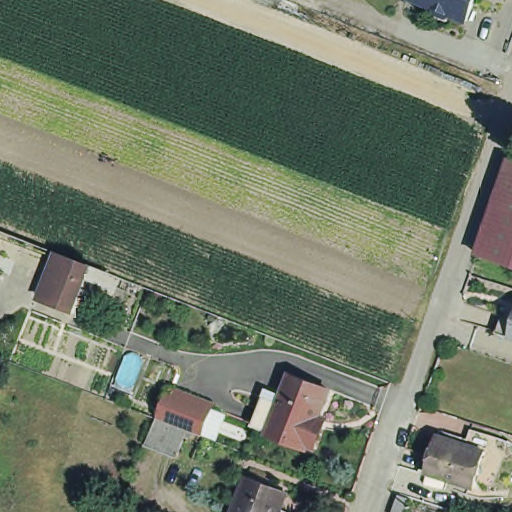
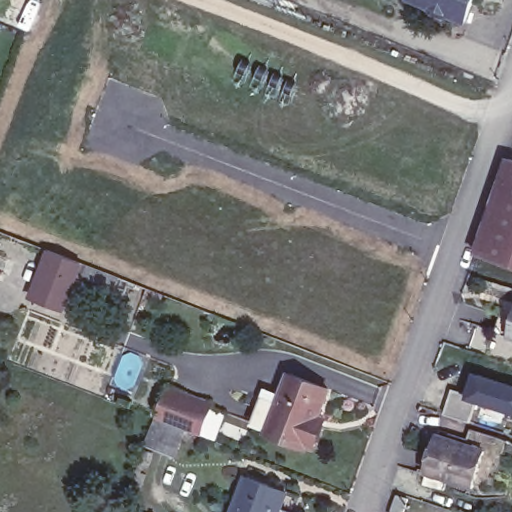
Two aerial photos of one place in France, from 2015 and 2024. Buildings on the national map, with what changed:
unchanged [(430,6),(414,0),(474,0),(465,21),(449,14),(445,23),(426,14),(430,6)]
unchanged [(480,254),(512,163),(512,264),(480,254)]
unchanged [(62,262),(77,268),(59,313),(31,303),(51,259),(62,262)]
unchanged [(120,277),(115,288),(88,278),(92,267),(120,277)]
unchanged [(510,338),(496,333),(505,308),(512,310),(512,338),(510,338)]
new [(474,410),(470,427),(445,419),(451,395),(465,398),(471,377),(512,390),(512,420),(474,410)]
unchanged [(324,433),(315,453),(308,451),(307,454),(267,439),(268,434),(253,428),(265,403),(278,408),(290,379),(330,394),(320,421),(327,424),(324,433)]
unchanged [(212,403),(202,433),(188,429),(176,455),(145,444),(169,387),(212,403)]
demolished [(512,426),(512,436),(509,435),(512,426)]
unchanged [(485,456),(473,493),(425,477),(437,441),(485,456)]
unchanged [(287,498),(281,512),(235,512),(246,483),(287,498)]
unchanged [(406,499),(402,512),(391,512),(396,496),(406,499)]

